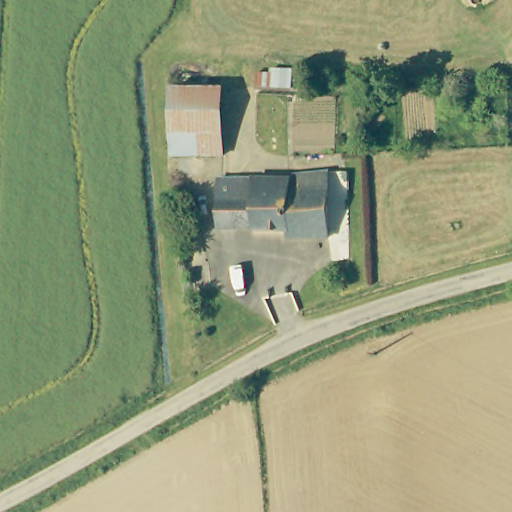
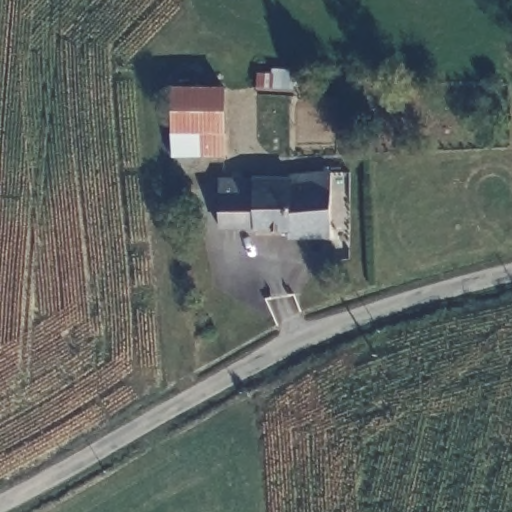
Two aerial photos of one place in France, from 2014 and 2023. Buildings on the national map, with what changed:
unchanged [(292,88),(257,87),(258,73),(272,73),(272,68),(292,70),(292,88)]
unchanged [(225,89),(224,155),(174,155),(175,88),(225,89)]
unchanged [(288,231),(258,230),(252,229),(222,228),(221,178),(287,179),(292,175),(330,174),(347,174),(346,216),(330,216),(329,238),(288,237),(288,231)]

